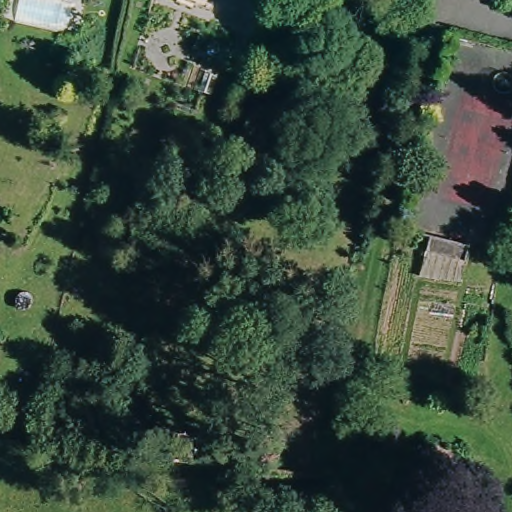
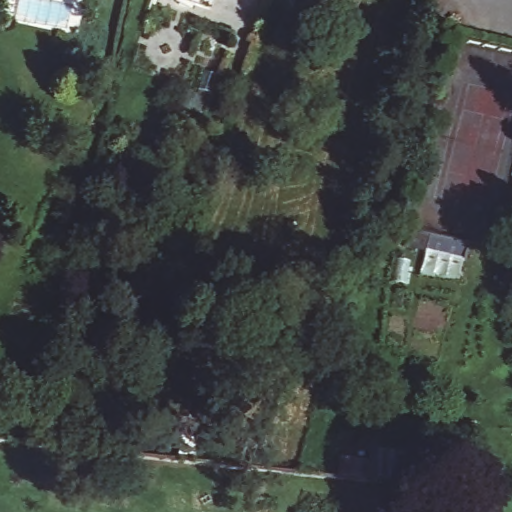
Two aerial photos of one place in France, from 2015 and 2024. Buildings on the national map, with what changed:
unchanged [(467,264),(425,254),(429,236),(472,247),(467,264)]

